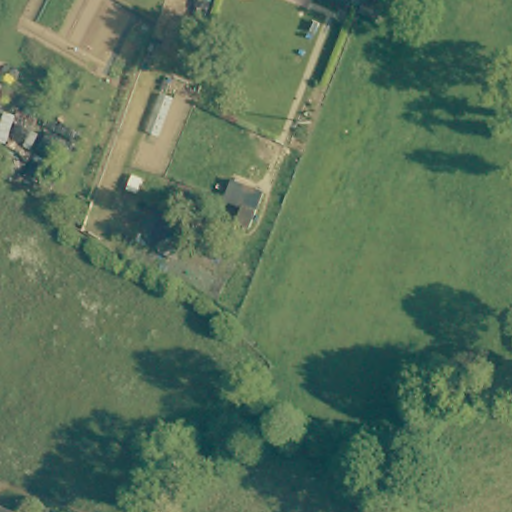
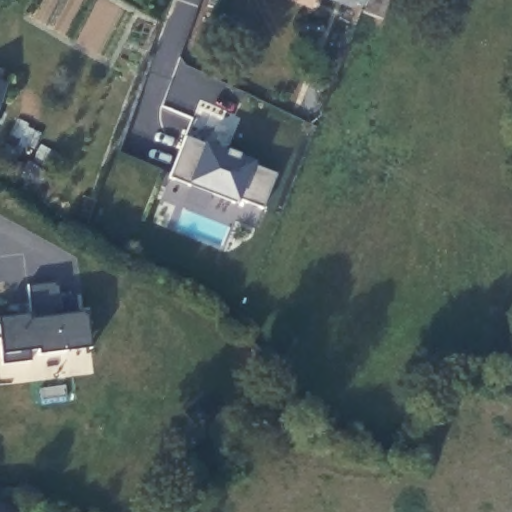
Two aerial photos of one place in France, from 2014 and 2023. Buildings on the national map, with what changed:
unchanged [(345,0),(351,0),(350,2),(345,0)]
unchanged [(9,85),(0,110),(0,83),(9,85)]
new [(190,140),(204,146),(205,143),(254,162),(252,166),(276,174),(261,212),(239,204),(186,183),(173,178),(190,140)]
new [(30,315),(30,320),(48,318),(42,307),(32,308),(29,287),(57,284),(59,298),(73,297),(78,314),(84,314),(89,349),(39,354),(39,350),(30,351),(32,361),(3,364),(2,355),(0,342),(0,319),(30,315)]
unchanged [(21,512),(0,512),(0,505),(21,512)]

